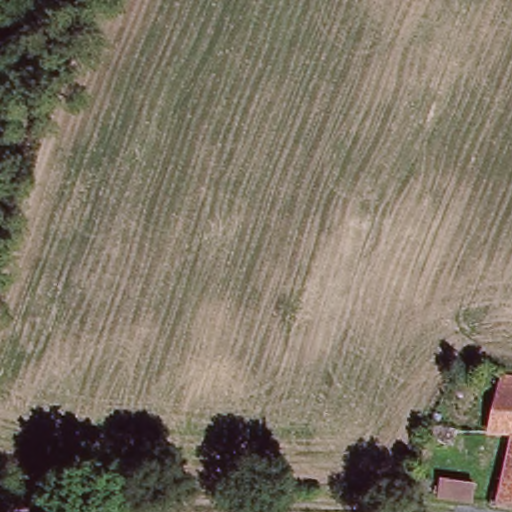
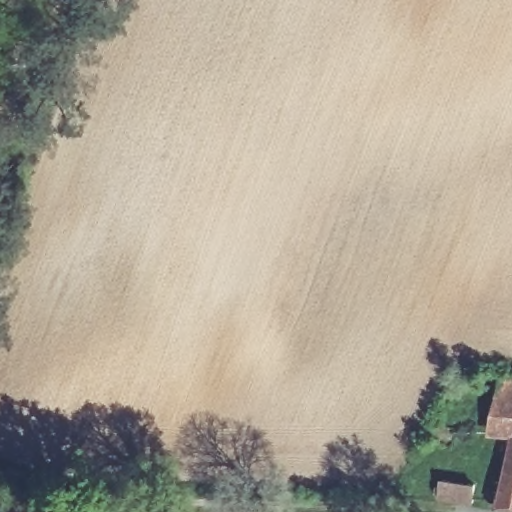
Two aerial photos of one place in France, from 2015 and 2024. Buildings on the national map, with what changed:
unchanged [(501,367),(512,368),(512,510),(498,507),(511,437),(490,432),(501,367)]
unchanged [(448,479),(477,481),(475,503),(446,500),(448,479)]

